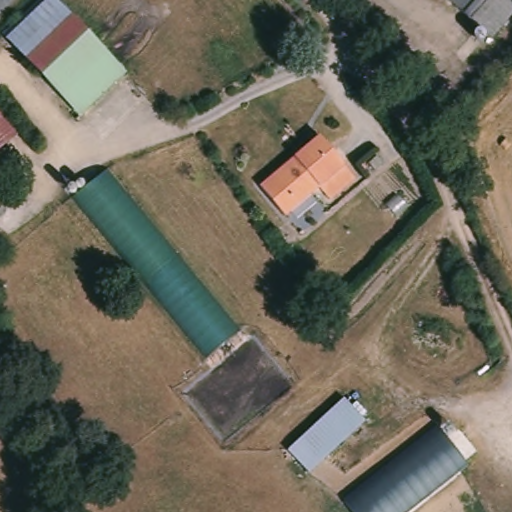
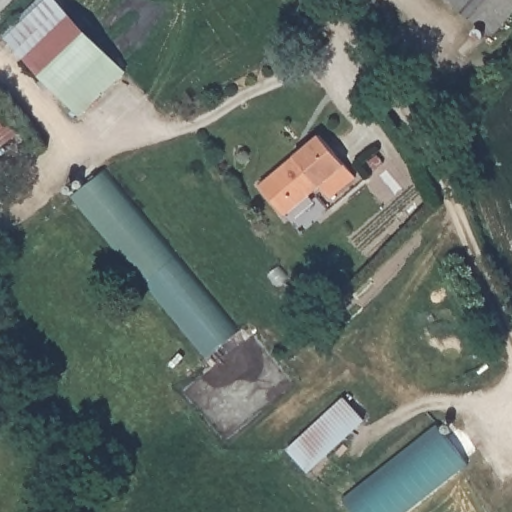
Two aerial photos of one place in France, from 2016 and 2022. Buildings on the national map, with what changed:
unchanged [(45,0),(123,64),(88,111),(7,47),(44,0),(45,0)]
unchanged [(483,37),(444,0),(512,0),(512,7),(483,37)]
unchanged [(0,149),(0,108),(20,131),(0,149)]
unchanged [(323,136),(357,180),(331,200),(321,189),(284,216),(260,184),(323,136)]
unchanged [(117,163),(234,337),(194,362),(107,233),(78,188),(117,163)]
unchanged [(340,401),(363,419),(315,476),(292,457),(340,401)]
unchanged [(434,426),(441,431),(450,424),(458,432),(448,439),(470,462),(406,512),(350,512),(338,499),(434,426)]

